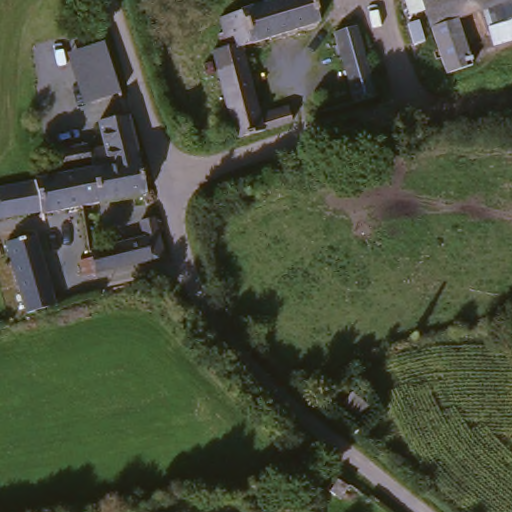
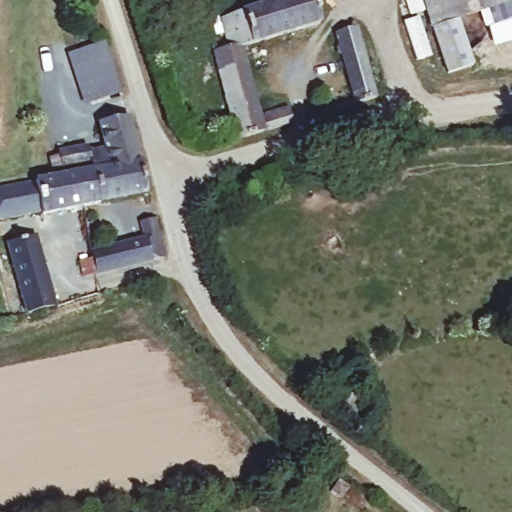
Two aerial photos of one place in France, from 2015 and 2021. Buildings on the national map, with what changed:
unchanged [(213,25),(273,5),(272,0),(306,0),(315,29),(233,54),(253,121),(281,113),(286,128),(258,136),(230,145),(206,57),(221,52),(213,25)]
unchanged [(472,71),(446,80),(424,16),(408,21),(403,3),(412,0),(448,0),(455,20),(472,71)]
unchanged [(448,0),(512,0),(512,1),(455,20),(448,0)]
unchanged [(375,98),(353,105),(333,33),(356,27),(375,98)]
unchanged [(114,95),(84,101),(71,59),(100,50),(114,95)]
unchanged [(0,219),(0,189),(33,183),(33,182),(74,174),(90,171),(88,164),(51,171),(48,159),(56,156),(56,153),(86,147),(86,153),(104,150),(96,120),(126,118),(138,162),(145,195),(97,205),(81,207),(39,215),(39,213),(0,219)]
unchanged [(71,267),(86,265),(83,257),(138,245),(133,227),(148,224),(158,263),(89,280),(75,282),(71,267)]
unchanged [(48,312),(21,318),(1,249),(28,242),(48,312)]

